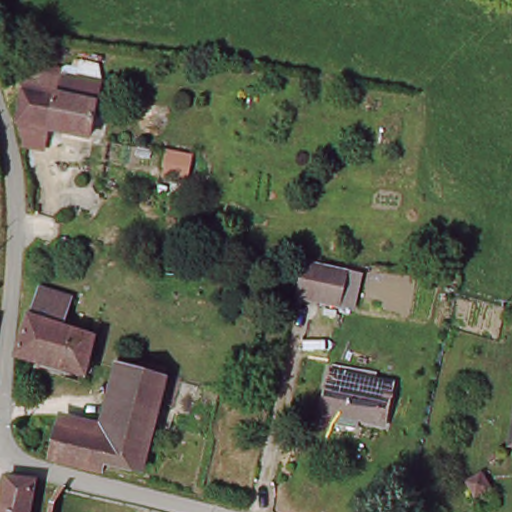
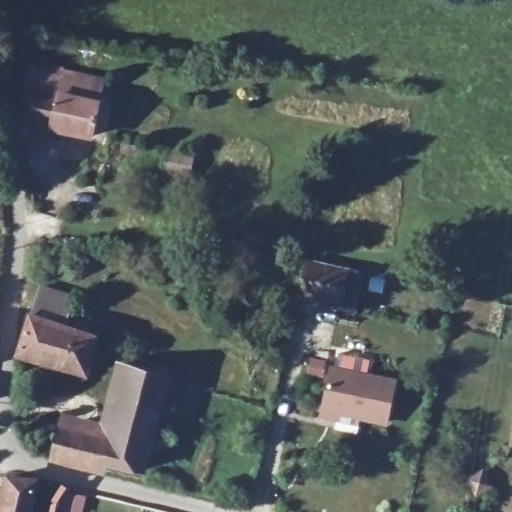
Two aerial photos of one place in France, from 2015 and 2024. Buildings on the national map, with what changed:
unchanged [(24,86),(65,92),(66,82),(74,79),(85,80),(85,77),(102,80),(98,101),(92,132),(55,126),(51,142),(17,136),(23,90),(24,86)]
unchanged [(305,261),(346,273),(337,305),(296,296),(305,261)]
unchanged [(100,335),(86,372),(18,349),(44,285),(73,295),(63,320),(100,335)]
unchanged [(56,458),(62,426),(105,436),(123,365),(165,378),(137,480),(56,458)]
unchanged [(341,420),(325,416),(336,370),(397,385),(386,424),(361,416),(358,425),(341,420)]
unchanged [(512,438),(511,438),(512,435),(512,438)]
unchanged [(32,512),(3,512),(10,478),(36,490),(32,512)]

